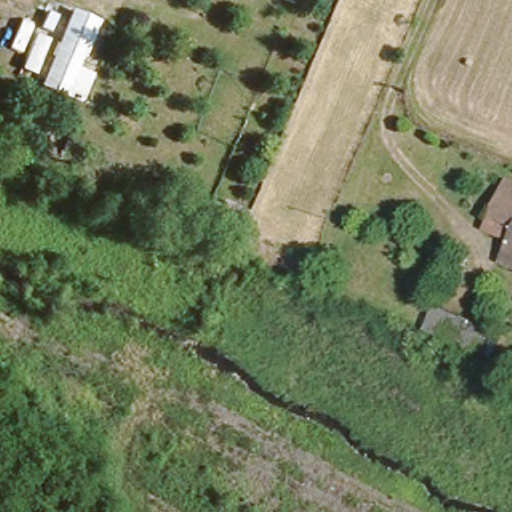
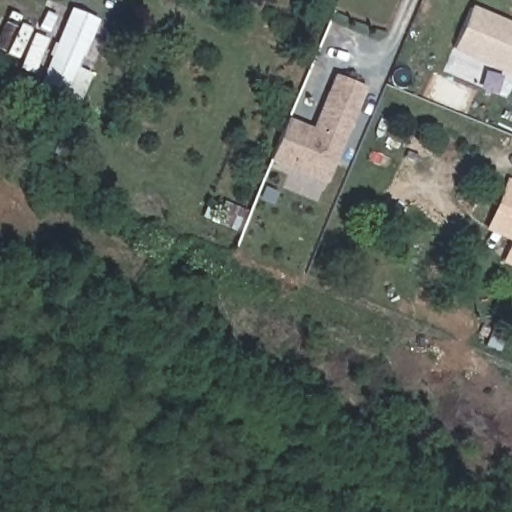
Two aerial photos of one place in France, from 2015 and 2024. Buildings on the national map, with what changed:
unchanged [(96,17),(76,65),(91,71),(79,104),(33,87),(69,5),(96,17)]
new [(501,23),(506,26),(512,28),(512,73),(512,72),(511,75),(447,47),(465,7),(501,23)]
new [(334,74),(366,88),(325,184),(269,162),(286,118),(312,127),(334,74)]
unchanged [(502,262),(512,240),(485,229),(508,177),(512,179),(512,267),(502,262)]
unchanged [(497,323),(487,355),(429,332),(439,305),(497,323)]

